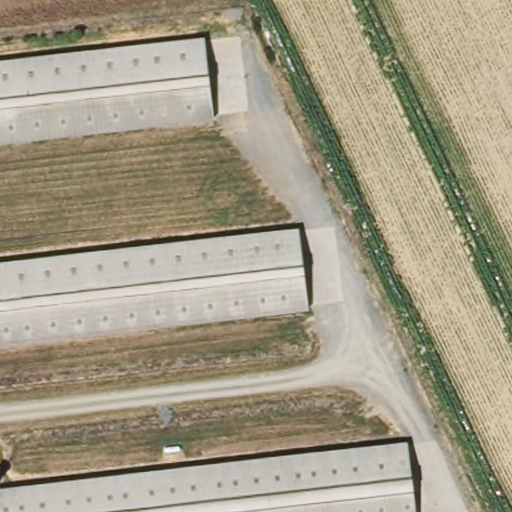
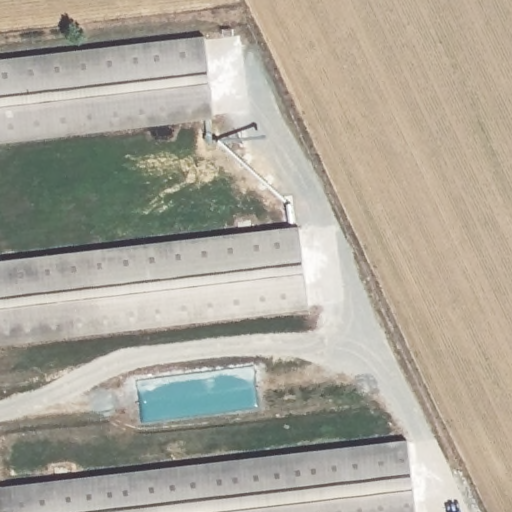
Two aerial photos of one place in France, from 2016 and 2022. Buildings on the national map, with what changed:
unchanged [(203,40),(213,116),(0,140),(0,63),(203,40)]
unchanged [(308,303),(0,338),(0,263),(299,229),(308,303)]
unchanged [(0,512),(0,484),(409,437),(417,512),(0,512)]

